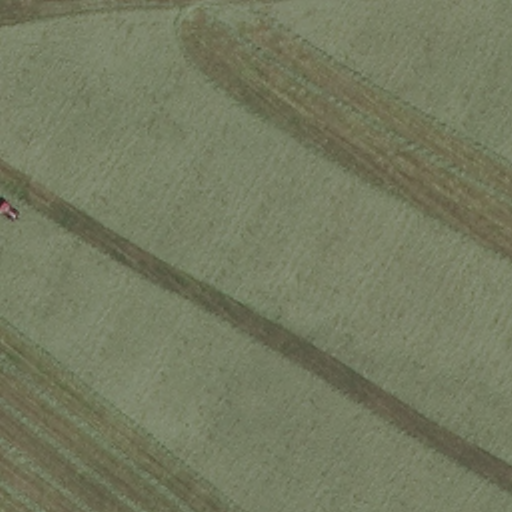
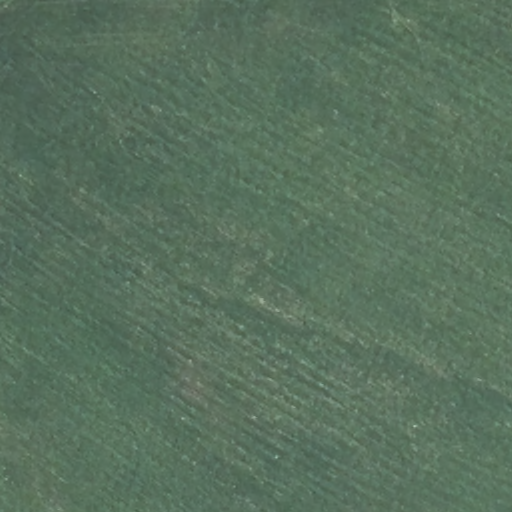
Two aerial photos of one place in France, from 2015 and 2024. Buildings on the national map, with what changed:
[]

